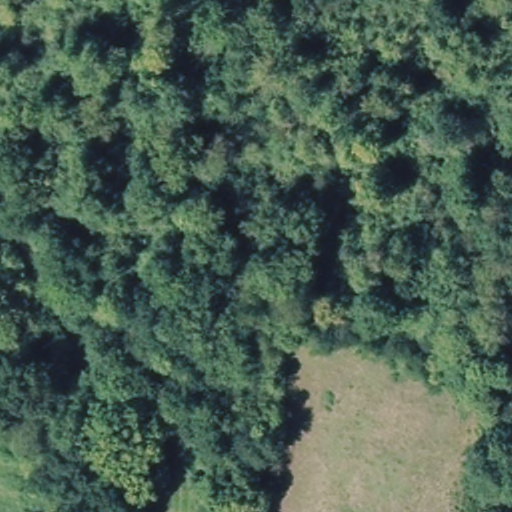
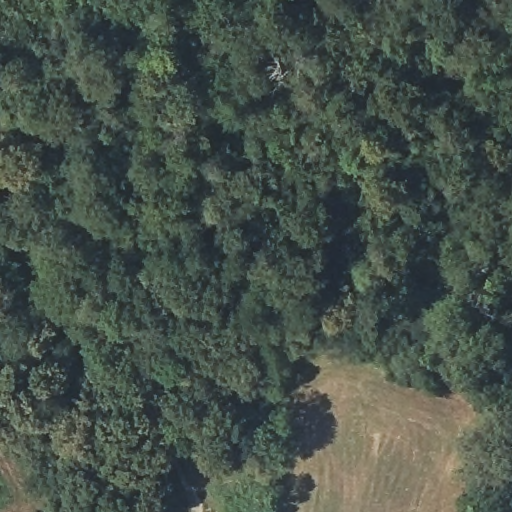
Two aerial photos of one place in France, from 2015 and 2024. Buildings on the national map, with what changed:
[]

